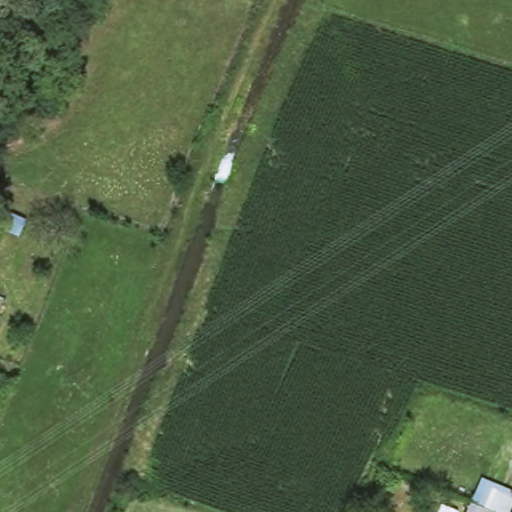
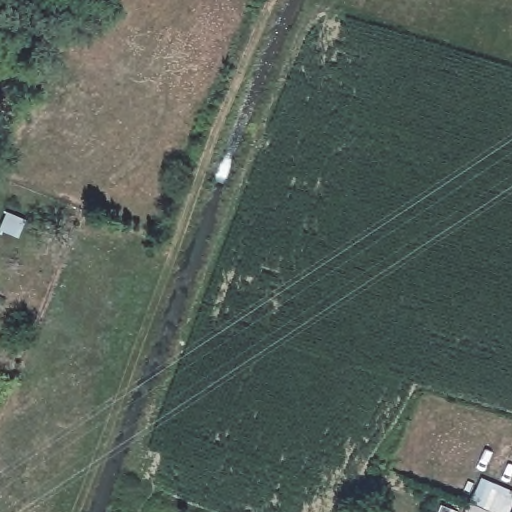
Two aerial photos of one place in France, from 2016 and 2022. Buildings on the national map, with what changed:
unchanged [(506,484),(512,486),(512,512),(503,512),(495,509),(489,506),(480,503),(478,502),(487,477),(506,484)]

